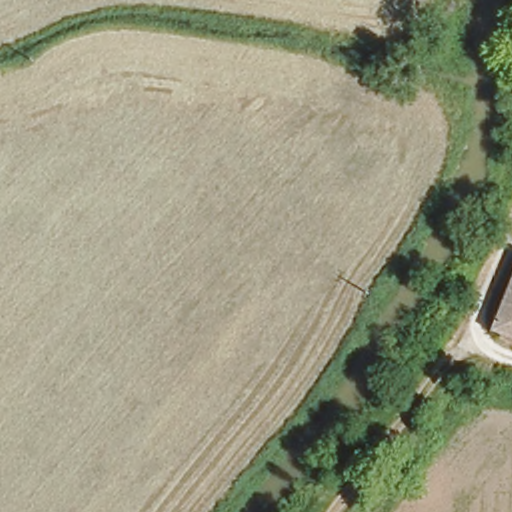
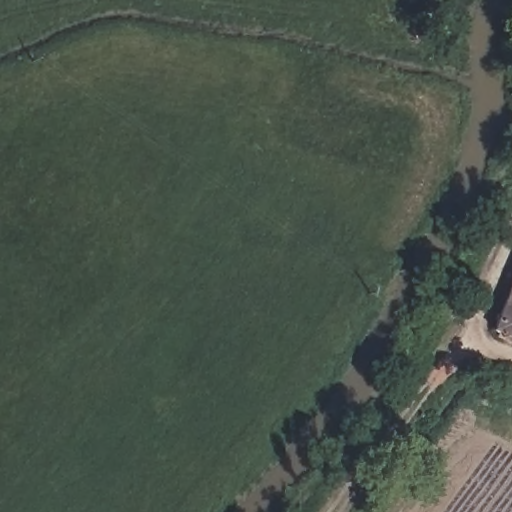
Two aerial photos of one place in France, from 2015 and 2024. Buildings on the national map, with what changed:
unchanged [(497,320),(512,282),(512,326),(497,320)]

